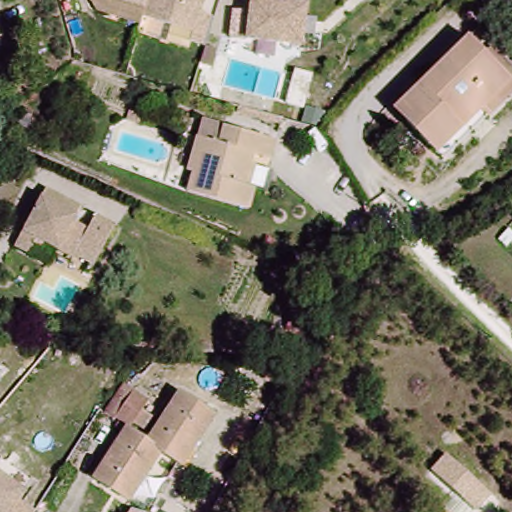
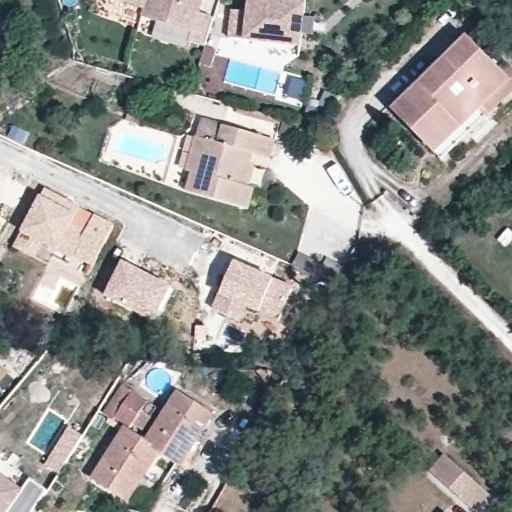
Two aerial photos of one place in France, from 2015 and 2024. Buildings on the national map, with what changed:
unchanged [(202,13),(218,18),(210,50),(182,43),(185,33),(140,20),(143,7),(120,0),(205,0),(202,13)]
unchanged [(307,45),(244,37),(247,0),(308,0),(307,45)]
unchanged [(425,147),(385,103),(483,17),(502,38),(497,41),(512,57),(512,88),(435,159),(425,147)]
new [(297,72),(315,76),(307,111),(289,106),(297,72)]
unchanged [(249,188),(242,209),(187,192),(191,173),(181,170),(192,138),(208,142),(218,144),(223,126),(271,139),(266,156),(252,152),(247,171),(242,186),(249,188)]
unchanged [(9,251),(15,238),(39,190),(72,204),(66,218),(88,229),(93,214),(113,225),(95,262),(79,253),(75,259),(43,243),(39,251),(32,265),(9,251)]
new [(0,208),(0,207),(1,207),(0,208)]
new [(236,261),(294,286),(277,323),(260,316),(248,310),(240,326),(211,308),(236,261)]
new [(124,262),(173,287),(154,323),(106,298),(124,262)]
unchanged [(170,355),(170,364),(150,362),(151,353),(170,355)]
unchanged [(143,388),(124,416),(113,408),(132,382),(143,388)]
unchanged [(157,454),(141,443),(180,388),(218,417),(181,470),(169,462),(157,454)]
unchanged [(157,454),(119,510),(79,480),(117,426),(141,443),(157,454)]
new [(442,452),(486,492),(472,507),(429,466),(442,452)]
unchanged [(13,501),(29,512),(28,512),(0,512),(0,479),(19,492),(13,501)]
unchanged [(135,512),(131,512),(132,511),(135,512)]

